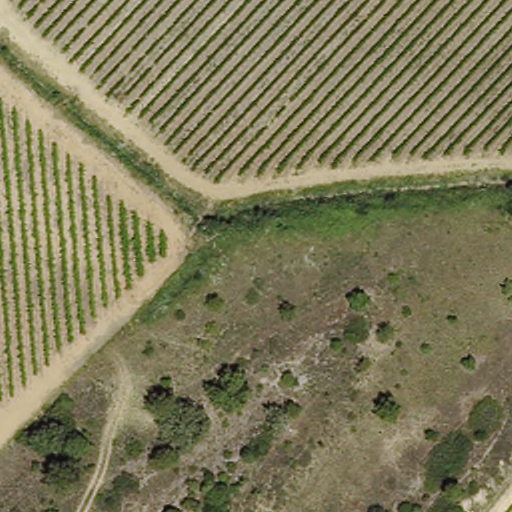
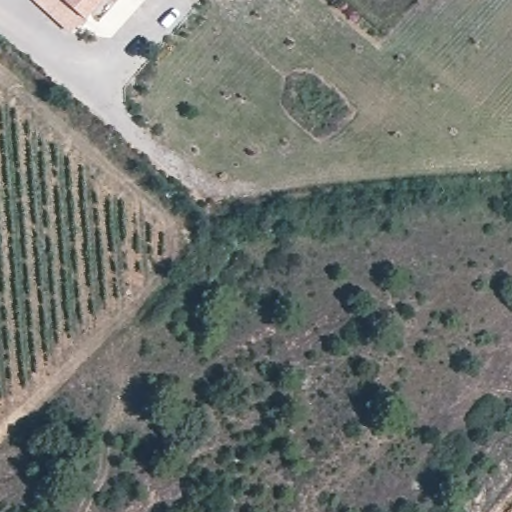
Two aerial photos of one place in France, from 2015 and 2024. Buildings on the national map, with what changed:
new [(84,20),(69,35),(32,0),(62,0),(84,20)]
new [(84,20),(62,0),(101,0),(84,20)]
new [(101,0),(116,0),(98,21),(90,13),(101,0)]

